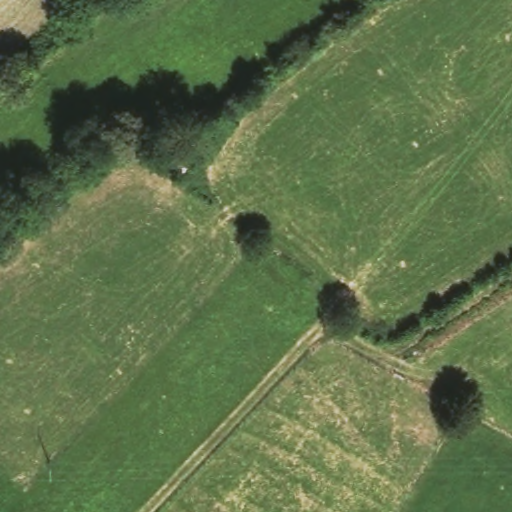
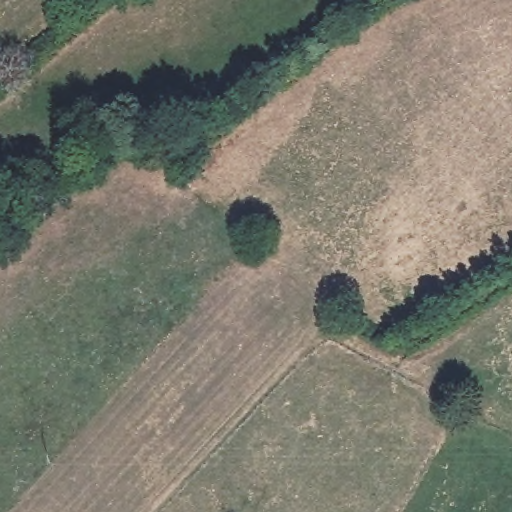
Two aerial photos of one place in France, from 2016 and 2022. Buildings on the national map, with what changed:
unchanged [(203,147),(179,171),(156,150),(181,124),(203,147)]

